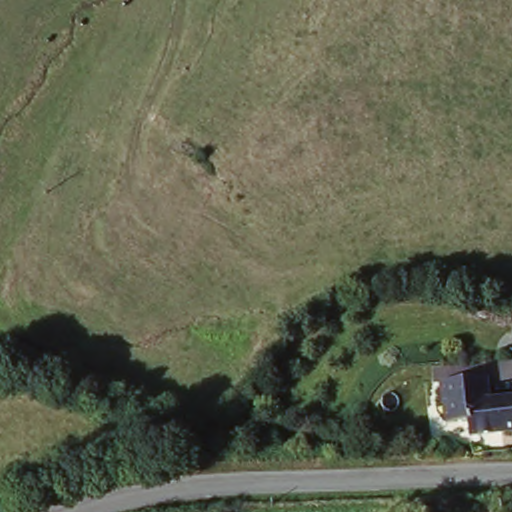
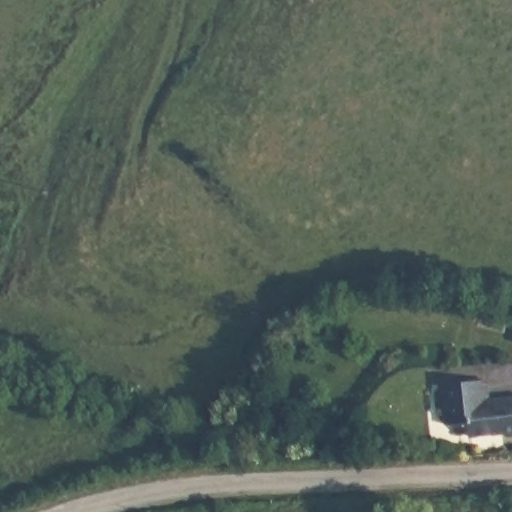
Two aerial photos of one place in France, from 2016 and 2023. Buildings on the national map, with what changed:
unchanged [(465,421),(442,423),(438,382),(482,378),(484,400),(512,397),(512,429),(466,435),(465,421)]

